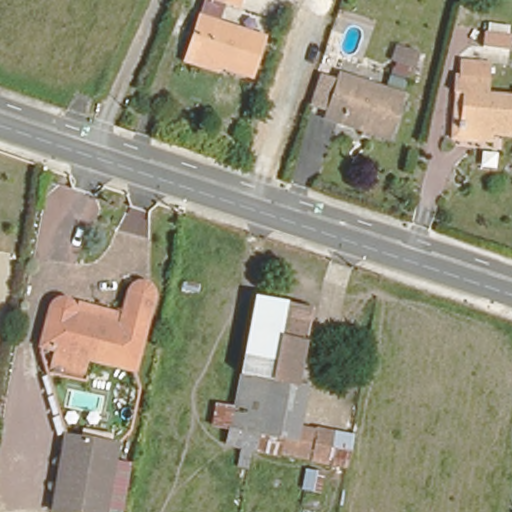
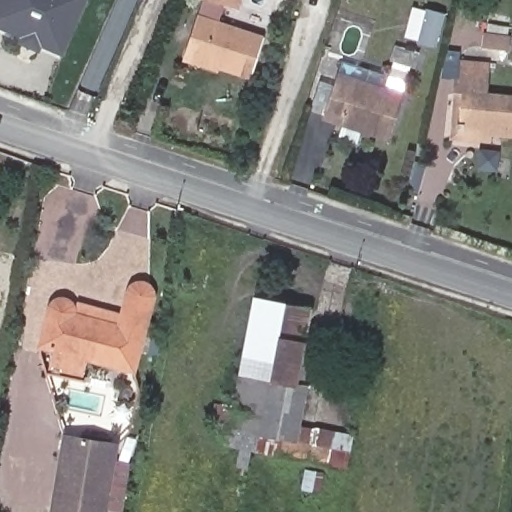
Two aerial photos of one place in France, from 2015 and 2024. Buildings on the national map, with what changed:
new [(65,57),(0,29),(0,0),(87,0),(65,57)]
unchanged [(242,11),(206,0),(244,0),(242,11)]
unchanged [(266,42),(251,84),(218,72),(216,78),(181,66),(199,19),(266,42)]
unchanged [(466,92),(452,90),(453,74),(462,75),(465,59),(496,62),(493,79),(491,95),(512,97),(512,138),(494,136),(461,132),(466,92)]
unchanged [(332,111),(317,105),(327,80),(343,86),(345,81),(410,102),(395,144),(330,119),(332,111)]
unchanged [(492,150),(446,144),(452,90),(466,92),(461,132),(494,136),(492,150)]
unchanged [(216,397),(232,400),(237,376),(251,297),(303,306),(297,340),(304,342),(312,343),(307,381),(299,425),(333,431),(348,435),(343,468),(326,465),(254,452),(222,449),(226,431),(210,428),(216,397)]
unchanged [(137,377),(91,364),(85,384),(51,375),(56,357),(39,352),(48,319),(50,313),(55,306),(55,305),(56,304),(57,303),(58,303),(59,302),(61,302),(62,301),(63,301),(64,301),(66,301),(67,301),(67,302),(69,302),(70,303),(71,303),(72,304),(73,305),(74,306),(75,307),(76,308),(77,312),(80,318),(82,319),(84,309),(123,317),(151,325),(137,377)]
unchanged [(104,512),(49,512),(62,434),(116,445),(104,512)]
unchanged [(298,466),(326,471),(322,492),(294,488),(298,466)]

